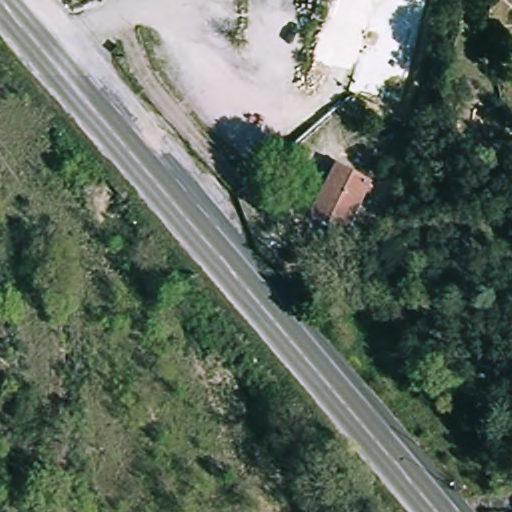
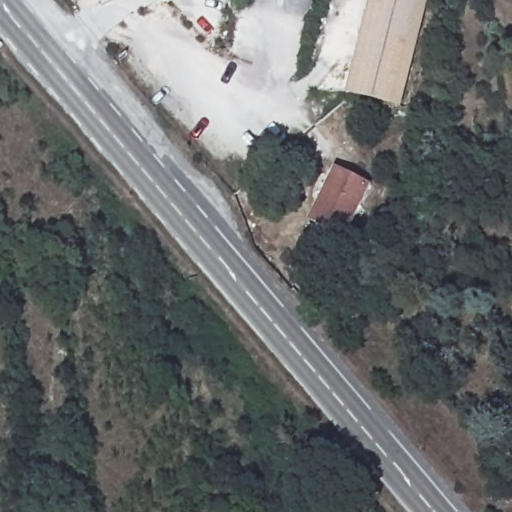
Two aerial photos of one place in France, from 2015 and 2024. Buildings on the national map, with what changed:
new [(370,0),(427,0),(401,106),(348,93),(370,0)]
unchanged [(311,221),(336,168),(369,184),(344,236),(311,221)]
unchanged [(500,179),(505,193),(485,200),(480,186),(500,179)]

